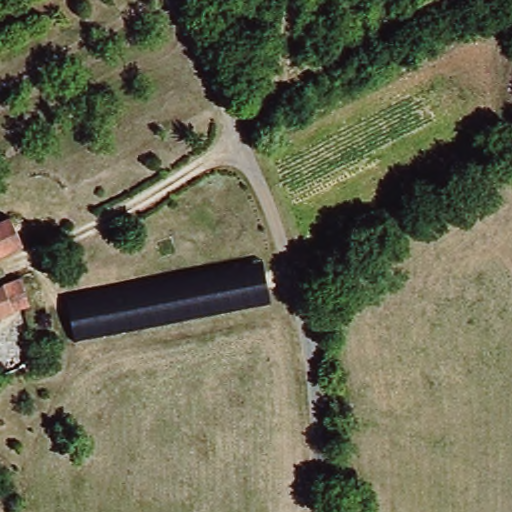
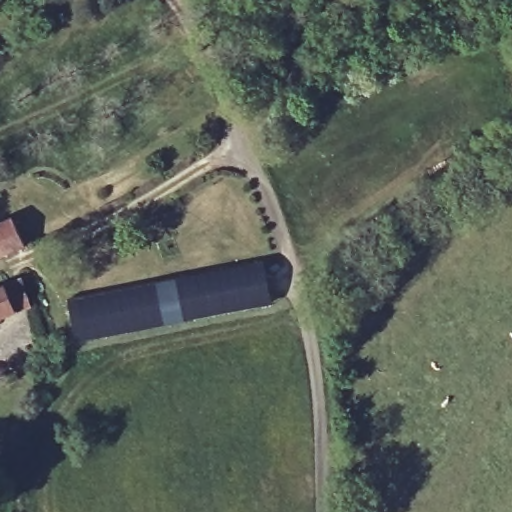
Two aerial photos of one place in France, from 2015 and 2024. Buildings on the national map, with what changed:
unchanged [(6,218),(17,247),(0,253),(0,221),(6,218)]
unchanged [(275,302),(76,341),(70,304),(268,261),(275,302)]
unchanged [(14,279),(23,304),(0,313),(0,285),(14,279)]

